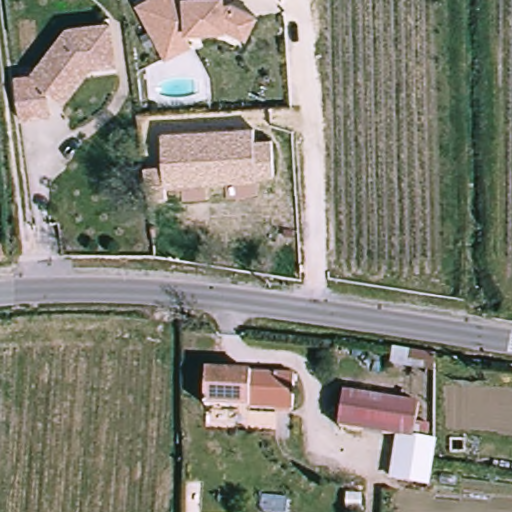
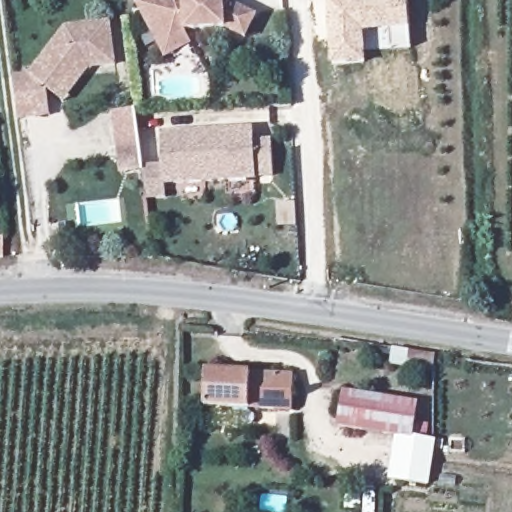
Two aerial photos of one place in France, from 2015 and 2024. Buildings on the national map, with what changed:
unchanged [(169,58),(161,41),(138,2),(141,0),(223,0),(223,1),(230,1),(256,12),(247,35),(226,26),(186,26),(195,44),(169,58)]
new [(410,27),(412,49),(392,50),(390,30),(364,33),(365,62),(331,64),(327,0),(408,0),(410,27)]
unchanged [(22,116),(19,90),(17,74),(33,71),(69,25),(112,20),(117,62),(92,65),(65,101),(52,89),(49,87),(52,112),(39,114),(22,116)]
unchanged [(164,186),(165,200),(149,203),(144,167),(164,162),(162,132),(252,126),(252,140),(271,140),(272,179),(255,181),(164,186)]
unchanged [(294,376),(292,410),(204,406),(206,372),(294,376)]
unchanged [(400,478),(404,449),(405,436),(393,435),(374,432),(347,431),(343,431),(344,420),(346,392),(422,400),(420,420),(433,421),(431,437),(440,438),(439,452),(435,482),(400,478)]

